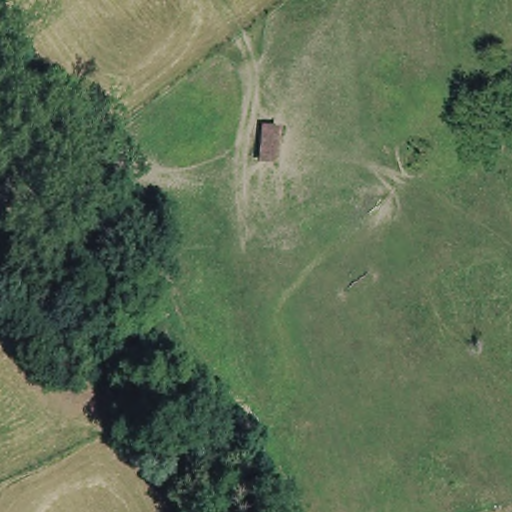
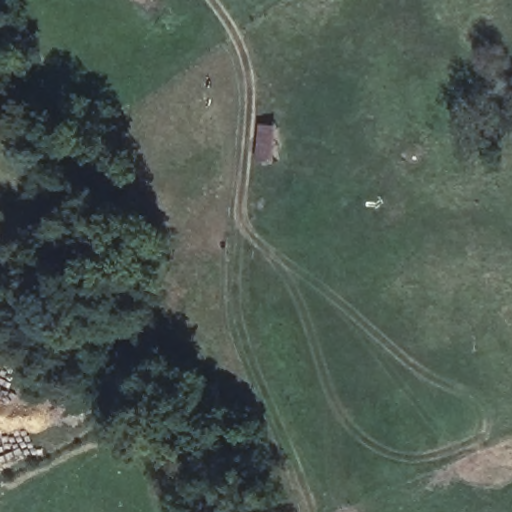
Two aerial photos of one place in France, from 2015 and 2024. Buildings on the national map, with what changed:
unchanged [(278,126),(272,164),(258,162),(263,124),(278,126)]

